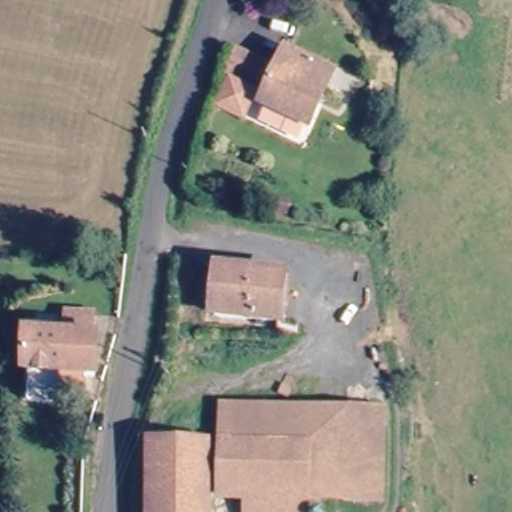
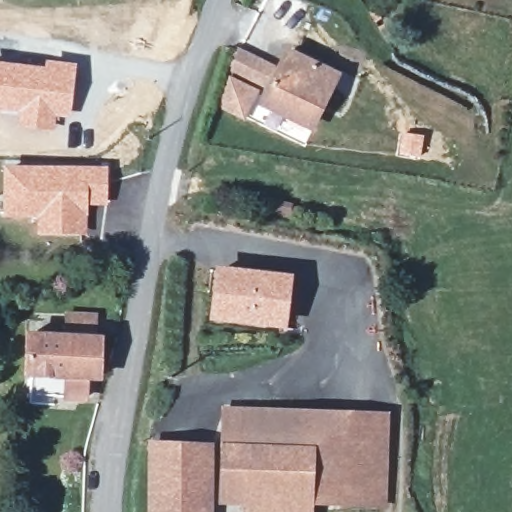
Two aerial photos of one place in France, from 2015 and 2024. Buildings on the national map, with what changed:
unchanged [(234,106),(243,82),(232,77),(240,54),(284,72),(274,97),(266,94),(255,117),(234,106)]
unchanged [(293,55),(338,76),(316,126),(271,106),(274,97),(284,72),(293,55)]
new [(44,67),(45,60),(77,64),(71,117),(57,117),(55,131),(18,127),(19,114),(0,111),(0,61),(44,67)]
new [(3,164),(108,166),(107,205),(89,205),(88,234),(36,234),(36,217),(3,217),(3,164)]
unchanged [(280,328),(218,322),(222,277),(284,284),(280,328)]
unchanged [(57,342),(57,327),(84,328),(84,342),(89,342),(88,381),(81,381),(80,399),(27,397),(27,377),(19,377),(21,341),(57,342)]
unchanged [(388,412),(383,503),(350,502),(353,410),(388,412)]
unchanged [(302,415),(343,412),(345,497),(305,500),(302,415)]
unchanged [(243,503),(220,506),(217,417),(302,415),(305,500),(305,512),(244,512),(243,503)]
unchanged [(152,442),(205,441),(206,512),(152,512),(152,442)]

